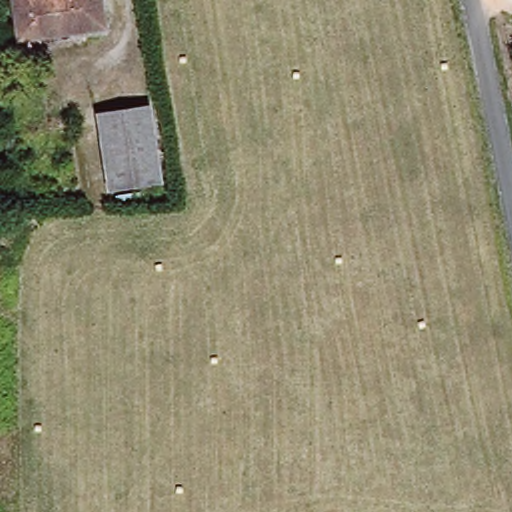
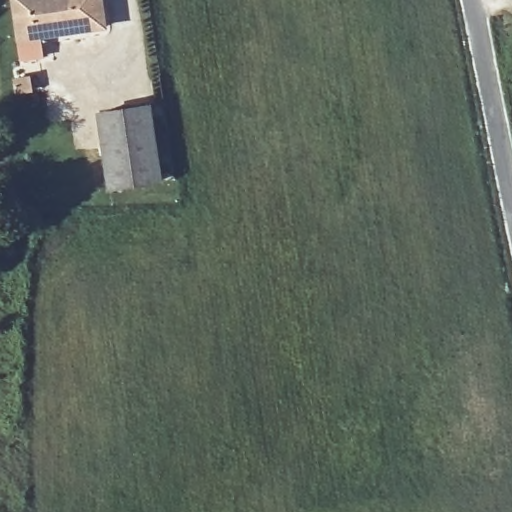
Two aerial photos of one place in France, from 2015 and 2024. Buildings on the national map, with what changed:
unchanged [(101,31),(25,41),(20,0),(95,0),(101,31)]
unchanged [(156,186),(106,191),(97,112),(149,108),(156,186)]

